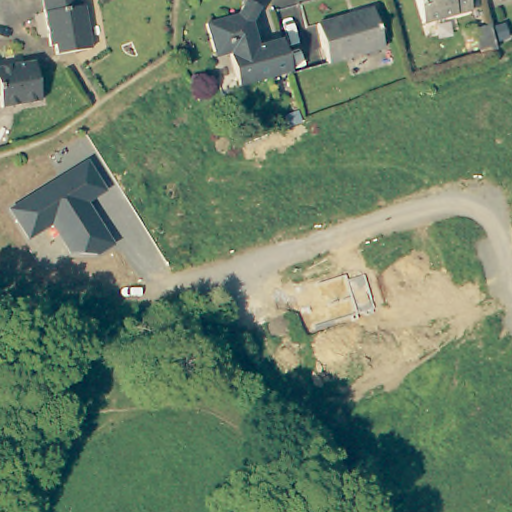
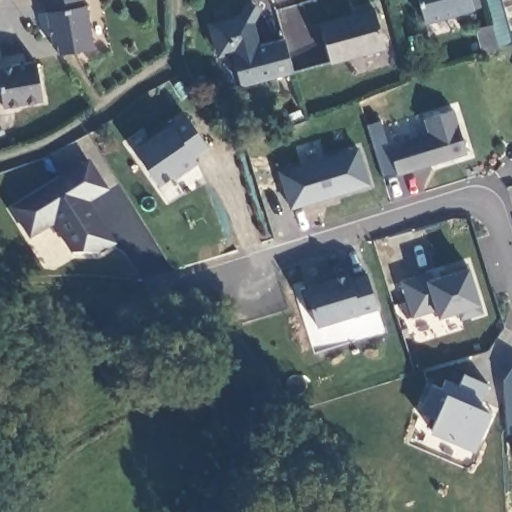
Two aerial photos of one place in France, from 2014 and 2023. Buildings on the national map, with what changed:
unchanged [(92,47),(57,55),(55,45),(49,47),(46,38),(41,13),(39,0),(82,0),(92,47)]
unchanged [(480,7),(471,9),(422,24),(416,0),(478,0),(480,7)]
unchanged [(206,27),(235,18),(245,7),(257,48),(281,41),(291,74),(240,89),(230,57),(216,61),(214,54),(206,27)]
unchanged [(327,64),(315,25),(368,10),(380,49),(327,64)]
unchanged [(482,53),(475,28),(490,23),(497,48),(482,53)]
unchanged [(17,54),(29,51),(36,92),(0,101),(0,57),(17,54)]
new [(397,175),(388,146),(428,134),(422,118),(455,107),(468,155),(397,175)]
new [(196,158),(200,161),(176,178),(172,174),(158,185),(132,152),(184,114),(210,148),(196,158)]
new [(290,210),(276,171),(357,146),(370,185),(290,210)]
unchanged [(67,252),(50,226),(26,240),(6,209),(86,160),(106,192),(88,203),(114,246),(97,257),(67,252)]
new [(456,320),(454,312),(437,318),(433,309),(410,318),(398,280),(425,272),(427,280),(439,275),(437,270),(466,261),(469,266),(481,304),(483,313),(456,320)]
unchanged [(319,328),(303,288),(345,274),(347,279),(368,273),(380,309),(319,328)]
new [(477,406),(491,411),(472,451),(430,433),(435,421),(418,414),(428,383),(440,388),(443,379),(459,385),(462,373),(488,383),(477,406)]

